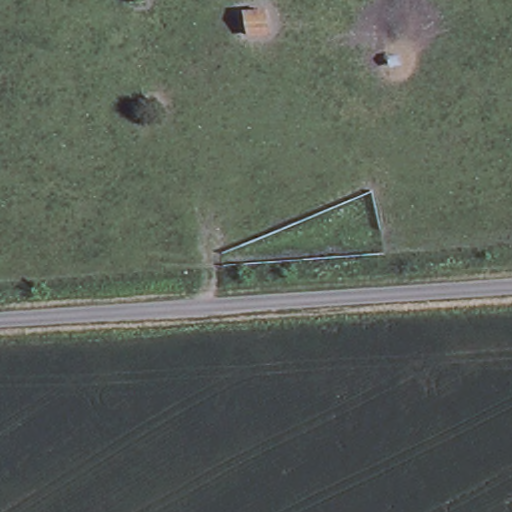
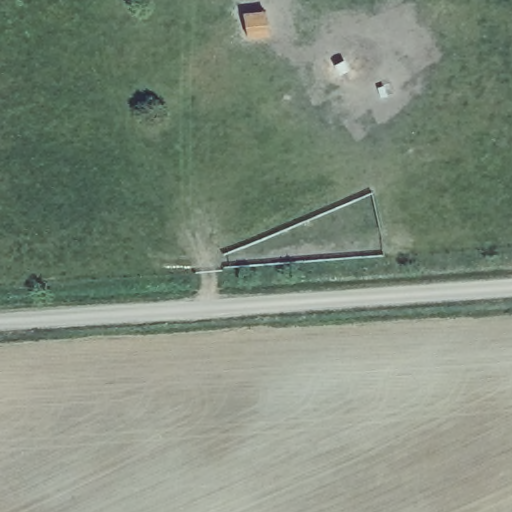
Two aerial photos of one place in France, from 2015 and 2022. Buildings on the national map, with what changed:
unchanged [(268,7),(273,40),(247,44),(242,10),(268,7)]

